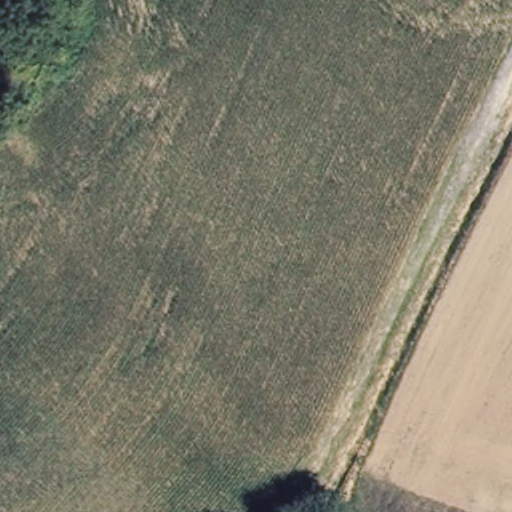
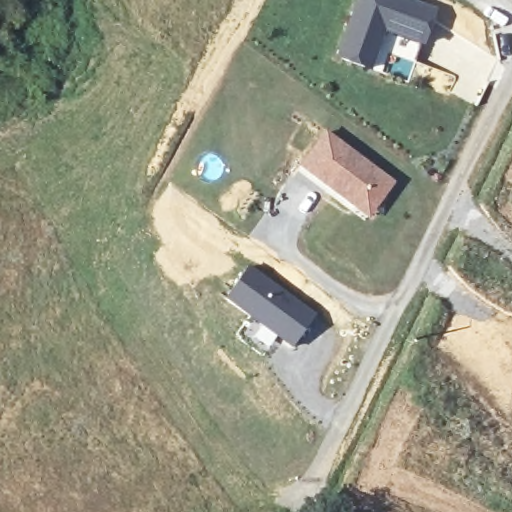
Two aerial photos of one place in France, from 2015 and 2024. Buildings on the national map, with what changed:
new [(422,39),(383,25),(369,65),(337,54),(356,0),(411,0),(433,8),(422,39)]
new [(415,58),(414,58),(393,51),(388,49),(387,49),(380,69),(369,65),(383,25),(422,39),(415,58)]
new [(373,196),(361,212),(348,203),(293,163),(318,128),(386,178),(373,196)]
new [(291,350),(223,302),(245,270),(313,318),(291,350)]

